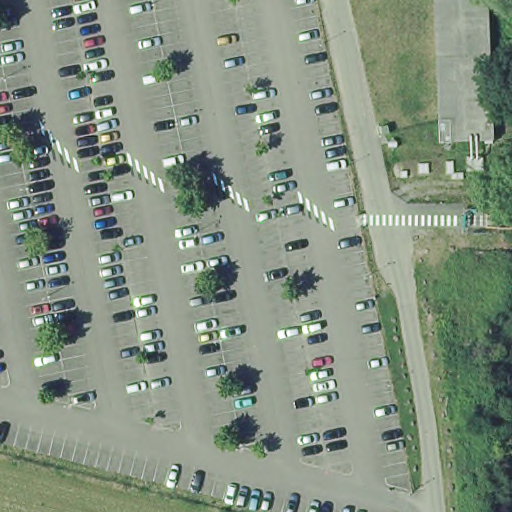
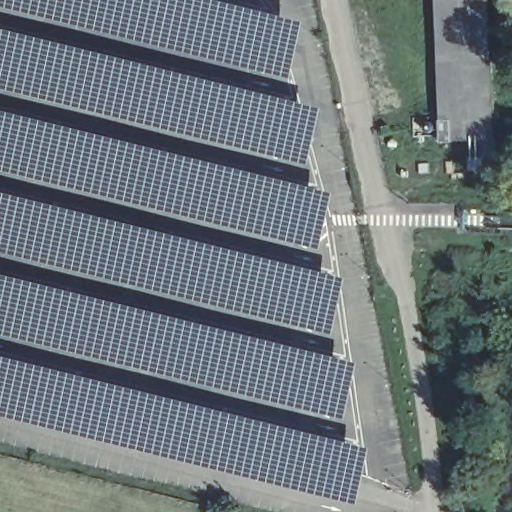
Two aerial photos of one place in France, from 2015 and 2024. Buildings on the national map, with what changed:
new [(292,76),(0,5),(0,0),(225,0),(306,20),(292,76)]
unchanged [(487,0),(493,138),(441,141),(437,0),(487,0)]
new [(0,27),(324,106),(310,162),(0,87),(0,27)]
new [(322,247),(0,168),(0,109),(335,191),(322,247)]
new [(0,191),(347,277),(334,332),(0,250),(0,191)]
new [(346,418),(0,331),(0,273),(360,363),(346,418)]
new [(0,357),(372,449),(359,502),(0,413),(0,357)]

